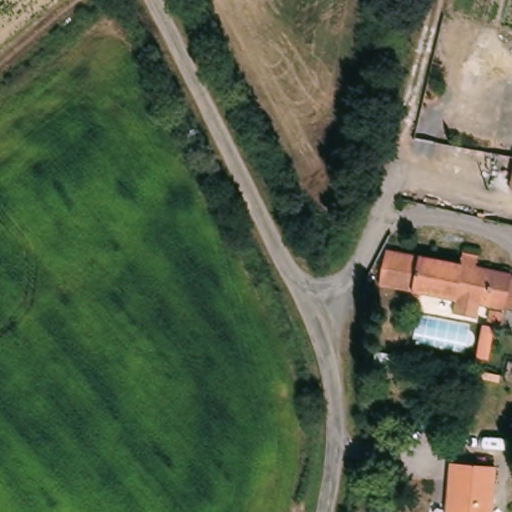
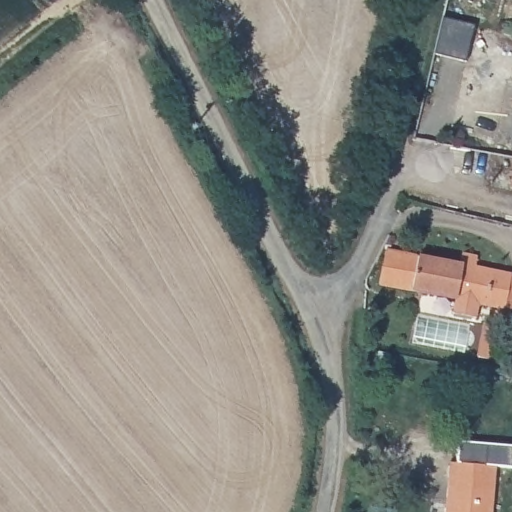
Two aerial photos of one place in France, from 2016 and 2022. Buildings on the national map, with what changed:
new [(445,17),(478,24),(469,62),(436,54),(445,17)]
unchanged [(389,249),(458,261),(460,244),(477,248),(475,263),(509,270),(504,306),(383,284),(389,249)]
unchanged [(452,463),(497,471),(491,512),(444,512),(452,463)]

